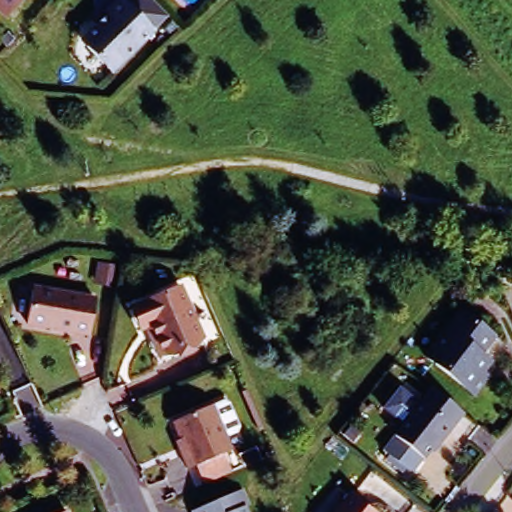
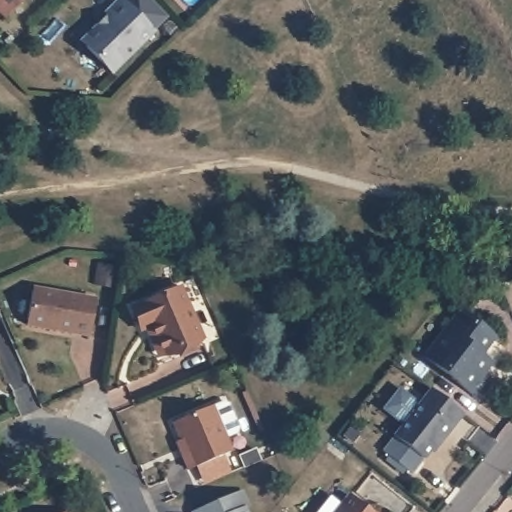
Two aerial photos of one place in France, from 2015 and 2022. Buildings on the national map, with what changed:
unchanged [(0,22),(0,0),(22,0),(0,22)]
unchanged [(147,36),(106,77),(81,51),(81,41),(103,20),(101,18),(115,4),(147,36)]
unchanged [(94,299),(88,336),(26,325),(33,289),(94,299)]
unchanged [(185,293),(207,343),(168,361),(155,331),(150,333),(141,312),(185,293)]
unchanged [(480,372),(486,377),(471,396),(420,355),(456,309),(491,337),(477,353),(488,361),(480,372)]
unchanged [(427,389),(446,403),(458,413),(436,440),(434,438),(418,458),(390,436),(427,389)]
unchanged [(196,483),(189,467),(183,470),(176,454),(181,452),(168,422),(207,406),(208,408),(219,403),(224,405),(233,426),(231,431),(220,436),(227,451),(221,454),(227,469),(196,483)]
unchanged [(238,489),(245,505),(241,507),(242,512),(190,512),(189,510),(238,489)]
unchanged [(330,512),(347,492),(371,512),(330,512)]

